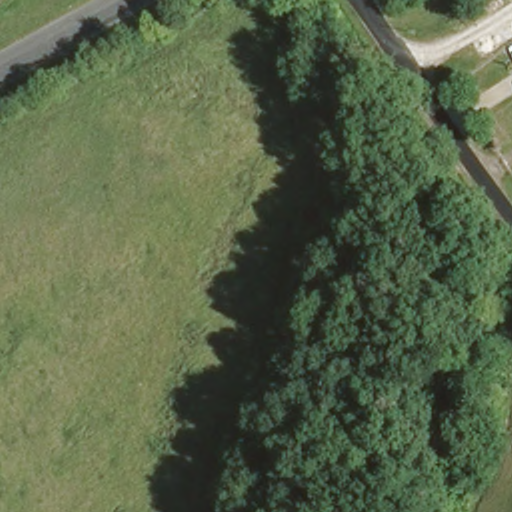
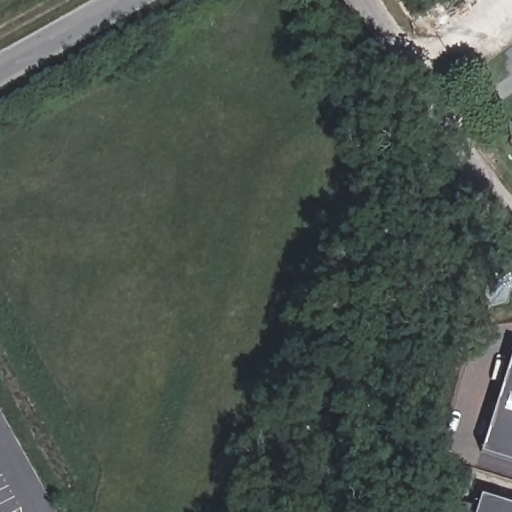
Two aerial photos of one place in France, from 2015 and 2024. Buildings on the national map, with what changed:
new [(512,462),(483,453),(512,362),(512,462)]
new [(479,507),(483,494),(512,503),(512,512),(462,512),(465,503),(479,507)]

